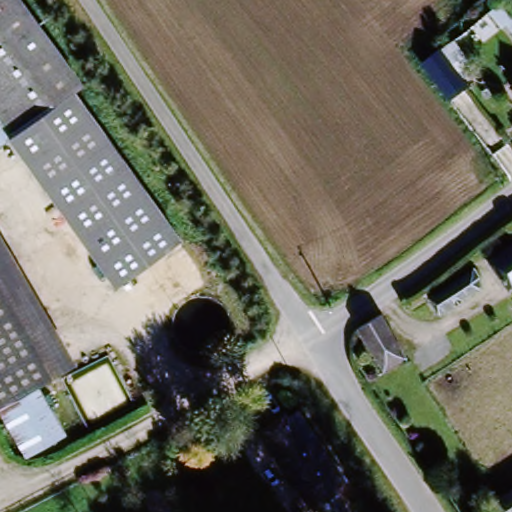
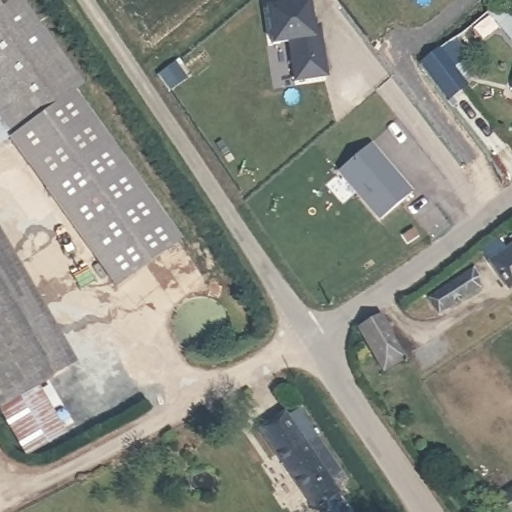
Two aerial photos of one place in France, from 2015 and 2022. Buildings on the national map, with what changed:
unchanged [(66,84),(185,235),(128,281),(9,130),(0,137),(0,0),(8,0),(73,79),(66,84)]
new [(314,39),(312,29),(318,27),(320,37),(326,77),(294,82),(288,44),(271,46),(265,9),(308,2),(314,39)]
unchanged [(459,65),(454,69),(464,81),(444,97),(417,61),(448,35),(455,45),(447,52),(459,65)]
unchanged [(501,94),(512,79),(512,101),(501,94)]
new [(378,222),(336,173),(369,145),(411,195),(378,222)]
unchanged [(0,379),(0,236),(77,367),(38,390),(22,367),(0,379)]
unchanged [(512,249),(512,289),(511,290),(489,255),(507,242),(512,249)]
unchanged [(428,296),(461,273),(472,290),(440,313),(428,296)]
unchanged [(390,363),(372,325),(384,318),(401,358),(390,363)]
unchanged [(58,433),(21,456),(0,421),(0,381),(19,370),(58,433)]
unchanged [(312,512),(311,512),(307,512),(262,433),(290,417),(305,446),(319,438),(346,487),(334,495),(335,498),(342,512),(312,512)]
unchanged [(512,482),(512,512),(503,512),(492,495),(512,482)]

